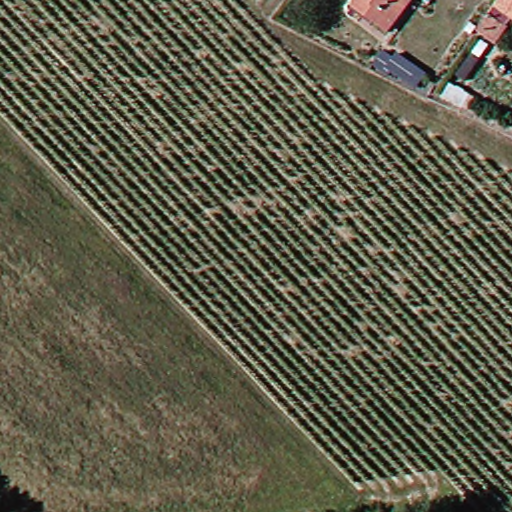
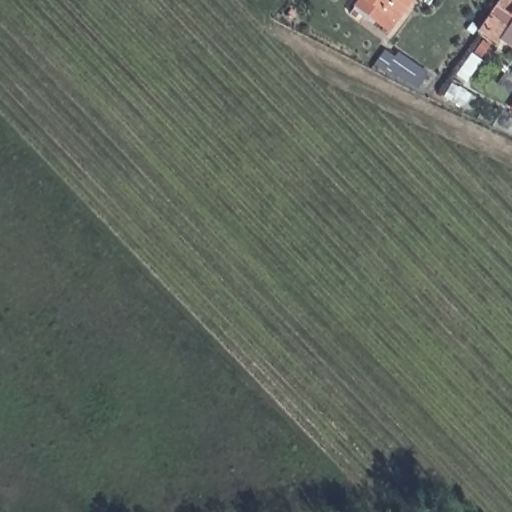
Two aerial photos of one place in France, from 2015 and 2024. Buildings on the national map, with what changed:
unchanged [(356,0),(400,0),(402,2),(380,32),(367,21),(350,8),(356,0)]
unchanged [(510,0),(512,0),(512,22),(500,15),(510,0)]
unchanged [(410,96),(385,78),(375,76),(368,72),(380,57),(389,64),(396,65),(420,82),(410,96)]

